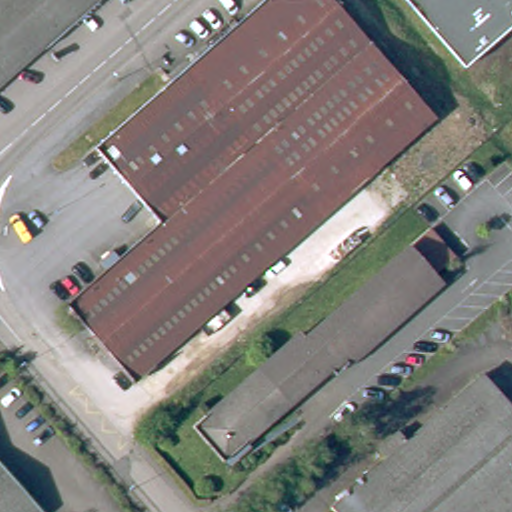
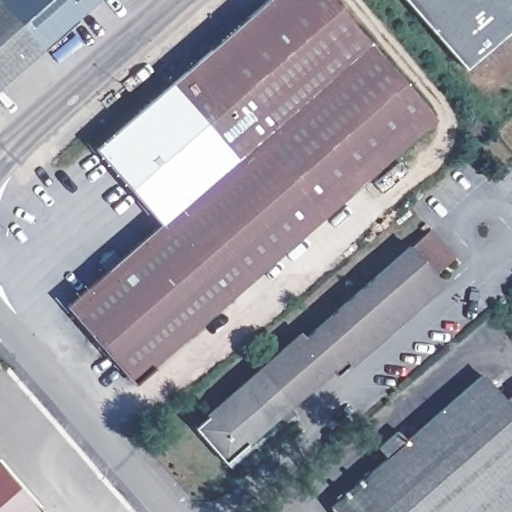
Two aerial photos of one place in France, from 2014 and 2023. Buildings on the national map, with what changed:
unchanged [(0,81),(0,0),(92,0),(0,81)]
unchanged [(265,0),(327,0),(431,118),(132,380),(65,306),(104,272),(95,262),(108,250),(117,260),(160,224),(94,150),(265,0)]
unchanged [(408,0),(512,0),(512,18),(461,62),(408,0)]
unchanged [(330,368),(226,459),(196,425),(260,369),(263,370),(268,366),(268,363),(301,334),(305,338),(409,245),(441,282),(356,357),(344,368),(336,375),(330,368)]
unchanged [(380,447),(398,431),(407,440),(482,374),(504,399),(512,392),(512,512),(337,512),(332,506),(388,457),(380,447)]
unchanged [(0,512),(0,468),(39,512),(0,512)]

